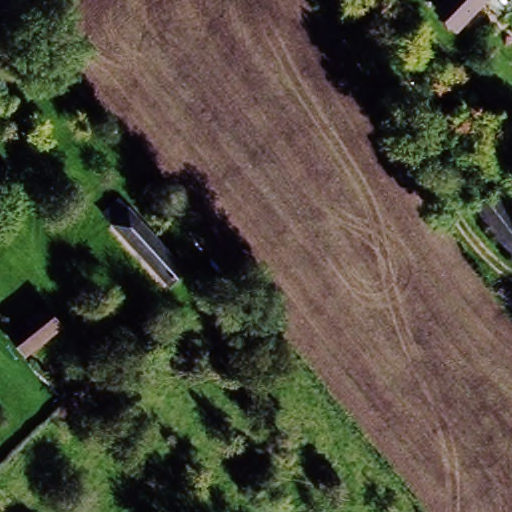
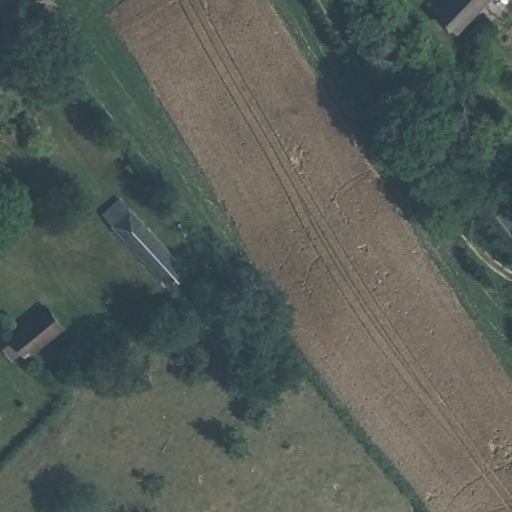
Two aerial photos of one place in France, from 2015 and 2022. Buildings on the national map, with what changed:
unchanged [(433,14),(448,0),(486,0),(451,33),(433,14)]
unchanged [(512,207),(512,264),(468,208),(497,188),(512,207)]
unchanged [(163,276),(118,225),(107,213),(122,200),(133,212),(178,262),(163,276)]
unchanged [(26,354),(10,337),(48,306),(63,324),(26,354)]

